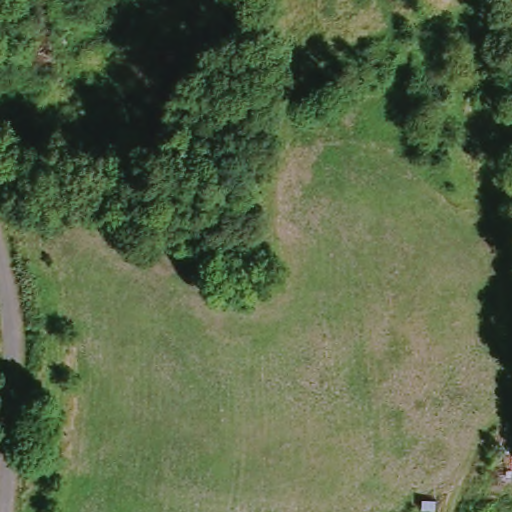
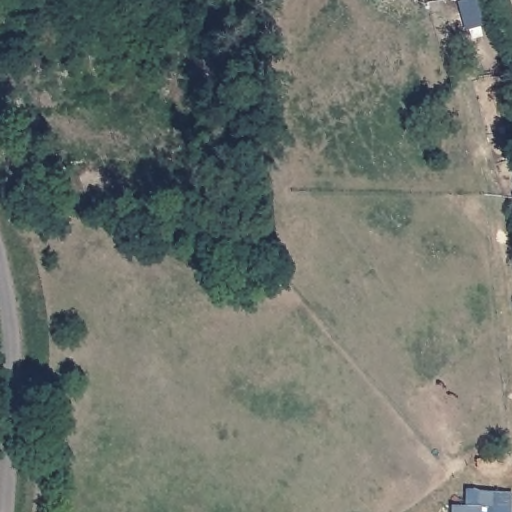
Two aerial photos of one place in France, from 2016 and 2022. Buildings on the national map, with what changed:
new [(464,507),(465,490),(511,493),(511,512),(450,512),(450,507),(464,507)]

